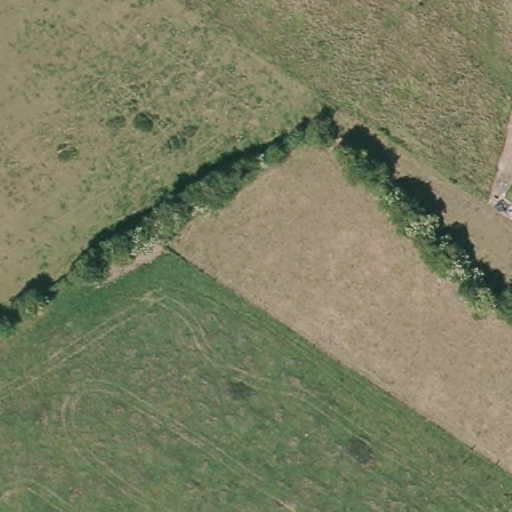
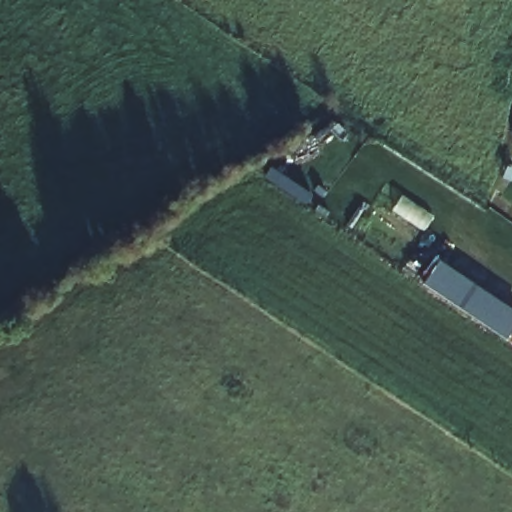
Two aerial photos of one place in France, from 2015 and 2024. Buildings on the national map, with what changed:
new [(461,308),(422,283),(437,260),(476,285),(461,308)]
new [(512,309),(512,329),(506,338),(461,308),(476,285),(512,309)]

